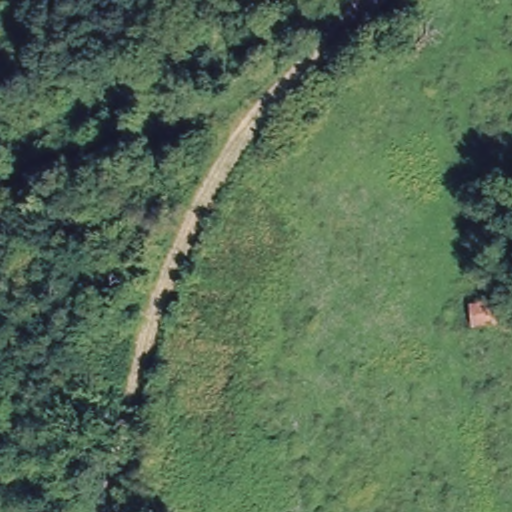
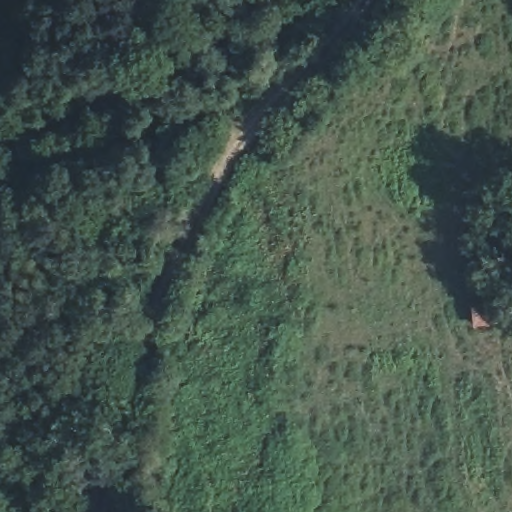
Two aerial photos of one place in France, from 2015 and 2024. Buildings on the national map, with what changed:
unchanged [(490,308),(492,327),(473,330),(470,311),(490,308)]

